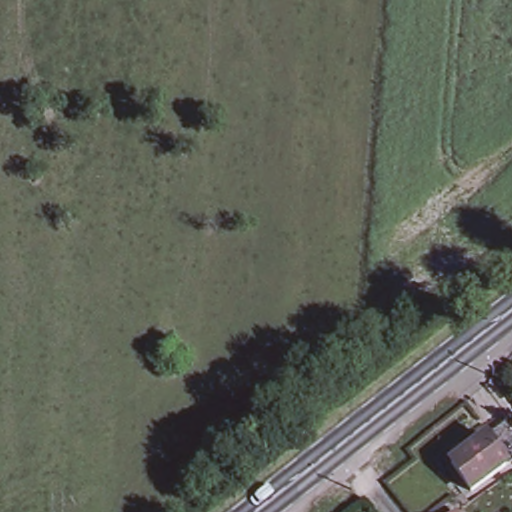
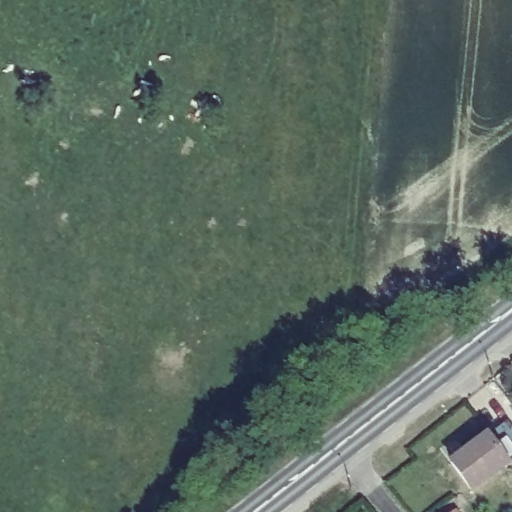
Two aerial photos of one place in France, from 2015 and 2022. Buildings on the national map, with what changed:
unchanged [(474,443),(496,427),(512,450),(512,458),(494,470),(458,496),(439,469),(474,443)]

